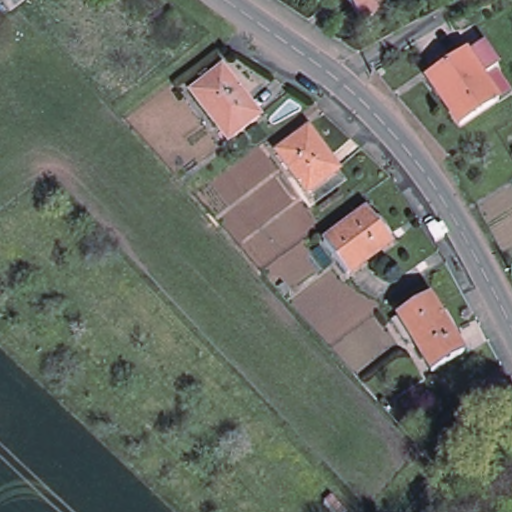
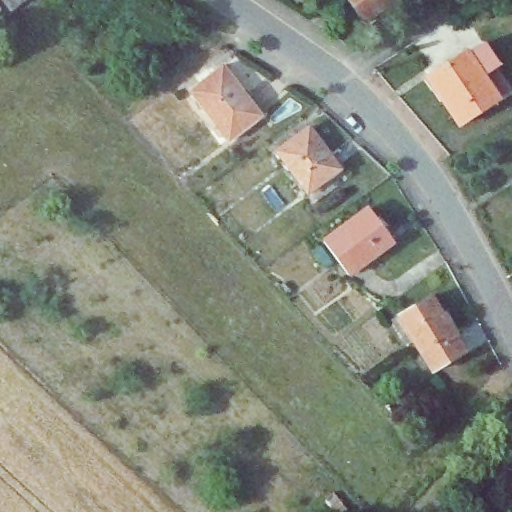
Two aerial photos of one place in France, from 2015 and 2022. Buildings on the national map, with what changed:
unchanged [(7,10),(0,1),(0,0),(18,0),(7,10)]
unchanged [(364,20),(349,0),(389,0),(364,20)]
unchanged [(425,79),(464,56),(465,59),(480,50),(495,74),(491,76),(505,99),(494,105),(455,129),(425,79)]
unchanged [(221,66),(259,114),(227,140),(189,90),(221,66)]
unchanged [(308,125),(340,165),(307,191),(275,151),(308,125)]
unchanged [(394,238),(347,274),(322,243),(368,206),(394,238)]
unchanged [(434,295),(469,350),(437,371),(417,340),(410,344),(395,320),(434,295)]

